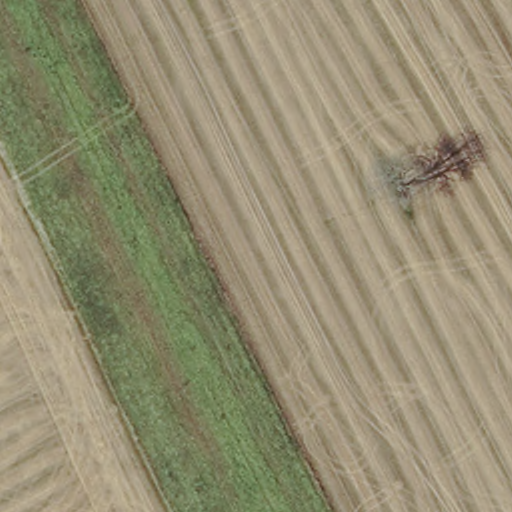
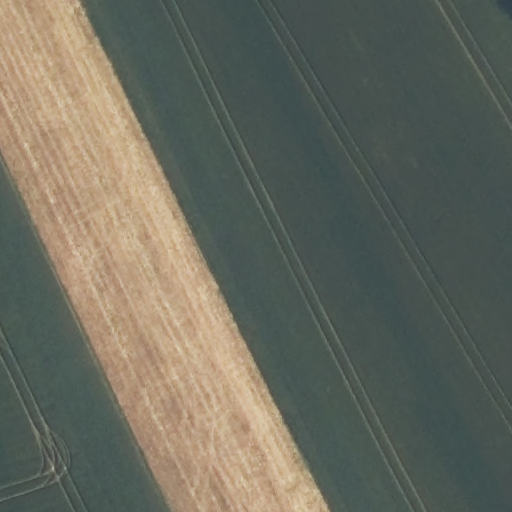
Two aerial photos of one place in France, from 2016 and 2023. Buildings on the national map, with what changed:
[]

